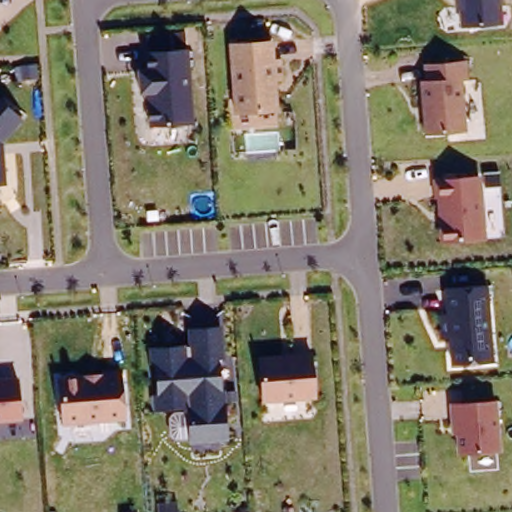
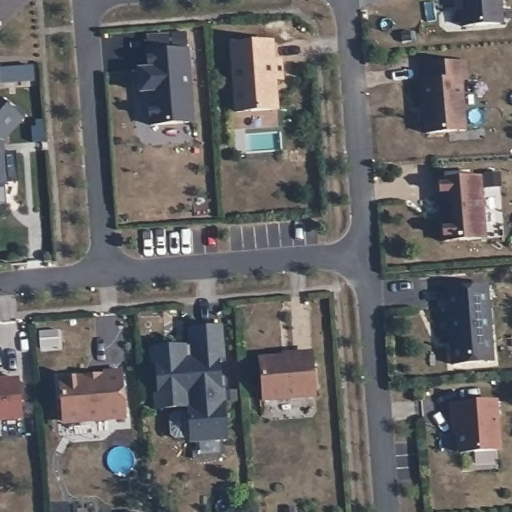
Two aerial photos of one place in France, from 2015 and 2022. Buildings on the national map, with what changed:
unchanged [(463,0),(502,0),(504,25),(465,28),(463,0)]
unchanged [(227,112),(223,44),(264,42),(265,61),(273,60),(274,79),(266,79),(269,109),(227,112)]
unchanged [(186,50),(189,122),(147,124),(145,91),(138,91),(137,69),(147,68),(146,52),(186,50)]
unchanged [(419,83),(424,83),(423,67),(464,63),(465,80),(459,81),(463,132),(423,135),(419,83)]
unchanged [(14,121),(0,137),(0,110),(14,121)]
unchanged [(477,240),(434,244),(433,226),(435,223),(434,213),(432,213),(430,199),(428,199),(427,182),(472,179),(477,240)]
unchanged [(450,367),(448,339),(439,340),(437,317),(446,317),(444,291),(484,288),(490,363),(450,367)]
unchanged [(187,343),(188,355),(195,354),(192,326),(222,324),(225,353),(220,354),(223,387),(225,386),(229,434),(194,437),(191,403),(159,405),(158,392),(161,392),(158,359),(155,359),(154,345),(187,343)]
unchanged [(312,398),(260,403),(257,367),(263,360),(309,356),(312,398)]
unchanged [(120,421),(63,424),(58,420),(56,379),(100,376),(99,373),(117,372),(120,421)]
unchanged [(15,379),(15,381),(17,419),(0,420),(0,380),(15,379)]
unchanged [(489,398),(491,447),(451,449),(449,418),(445,418),(444,400),(489,398)]

